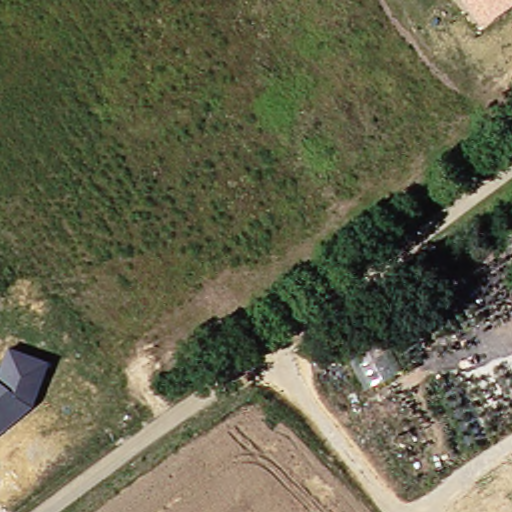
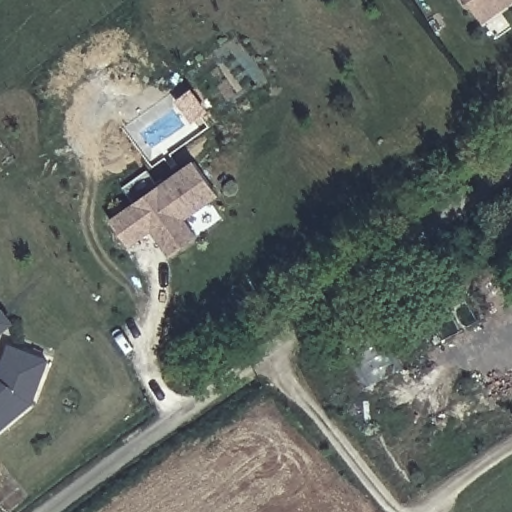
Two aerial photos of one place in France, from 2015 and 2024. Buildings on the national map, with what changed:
unchanged [(465,0),(512,0),(482,22),(465,0)]
new [(218,195),(186,217),(198,235),(169,255),(152,230),(129,246),(111,218),(193,161),(218,195)]
unchanged [(7,344),(49,359),(33,403),(0,431),(0,364),(7,344)]

